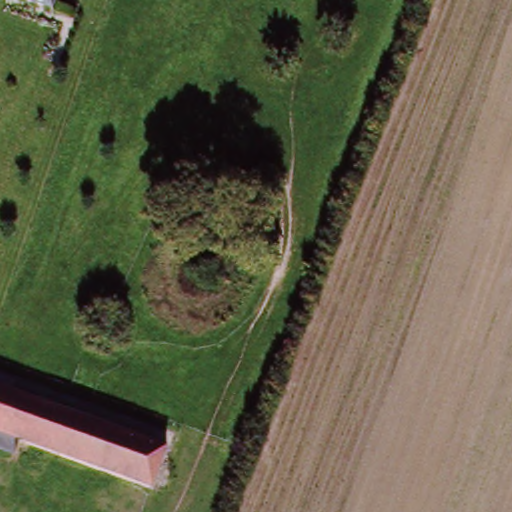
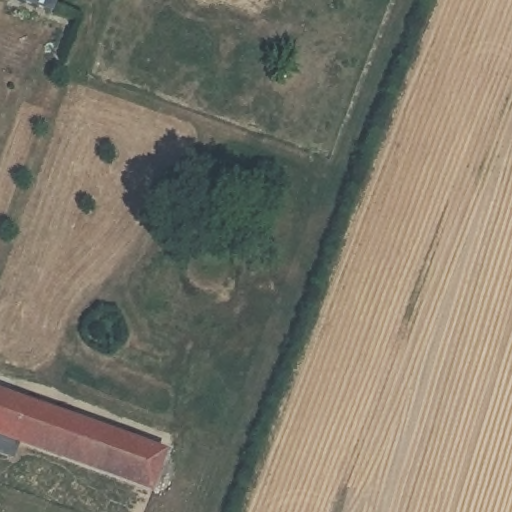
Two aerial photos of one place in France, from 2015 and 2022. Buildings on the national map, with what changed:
unchanged [(55,18),(9,0),(62,0),(55,18)]
unchanged [(13,460),(0,455),(0,395),(168,456),(155,493),(18,445),(13,460)]

